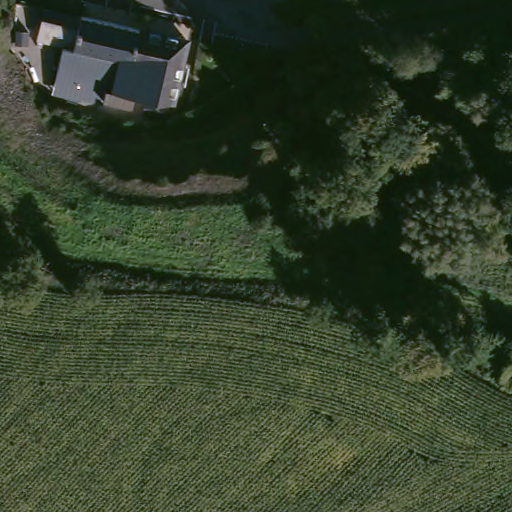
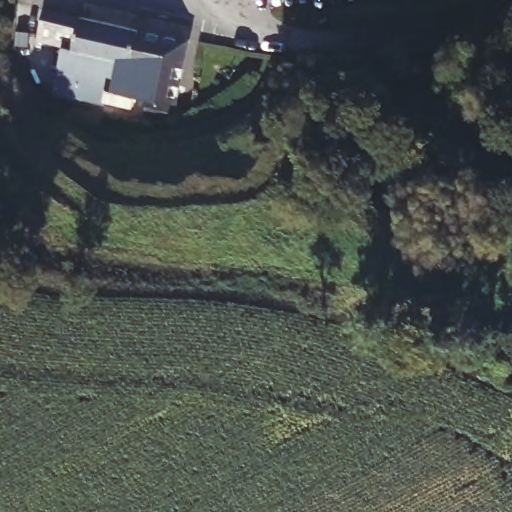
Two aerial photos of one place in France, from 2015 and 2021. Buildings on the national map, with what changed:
unchanged [(189,37),(171,115),(144,111),(148,101),(108,93),(109,84),(56,75),(64,44),(74,46),(81,16),(189,37)]
unchanged [(482,379),(491,346),(512,352),(512,388),(482,379)]

